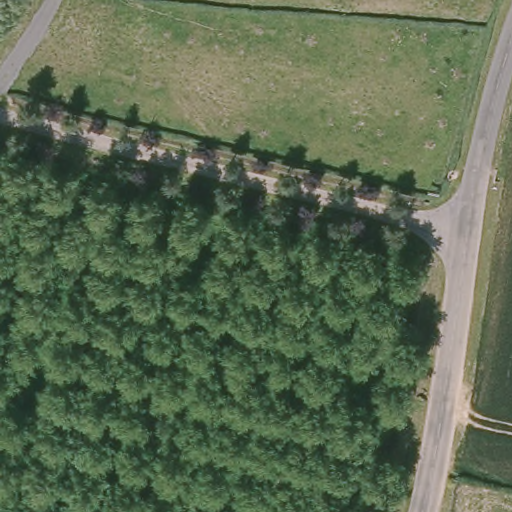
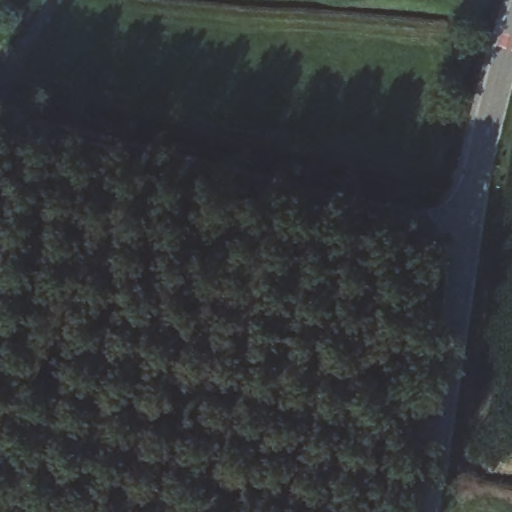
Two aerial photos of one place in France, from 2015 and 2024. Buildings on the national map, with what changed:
[]

